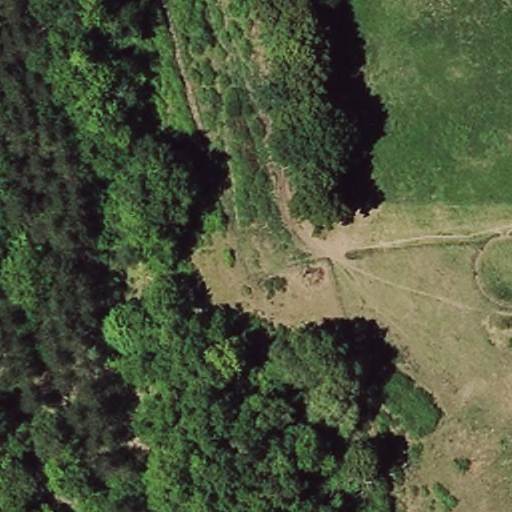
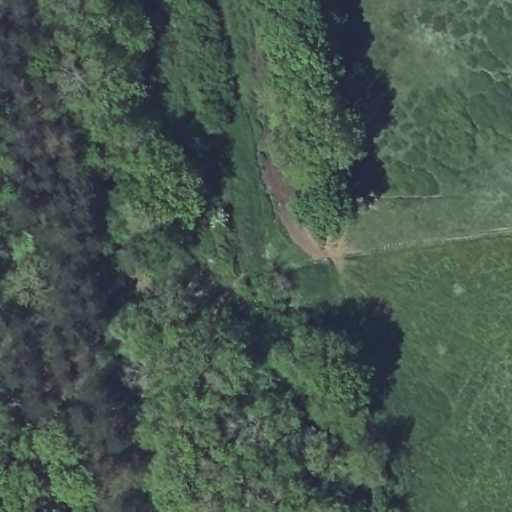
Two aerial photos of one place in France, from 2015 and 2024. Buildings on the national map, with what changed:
[]

